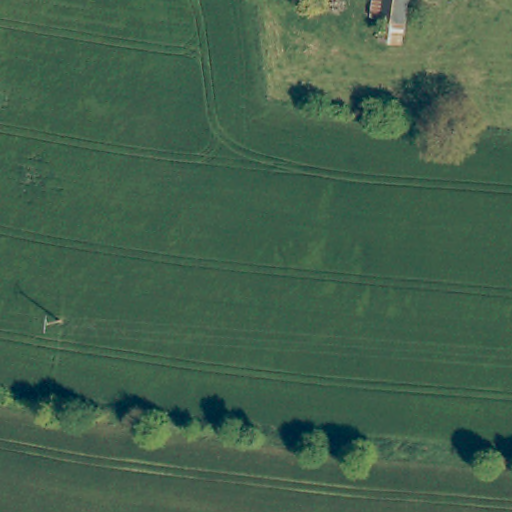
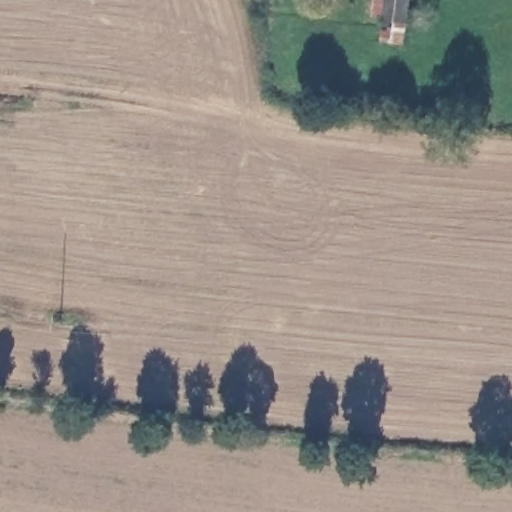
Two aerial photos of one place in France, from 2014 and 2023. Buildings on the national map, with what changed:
unchanged [(386,0),(408,0),(403,28),(384,25),(385,11),(386,0)]

